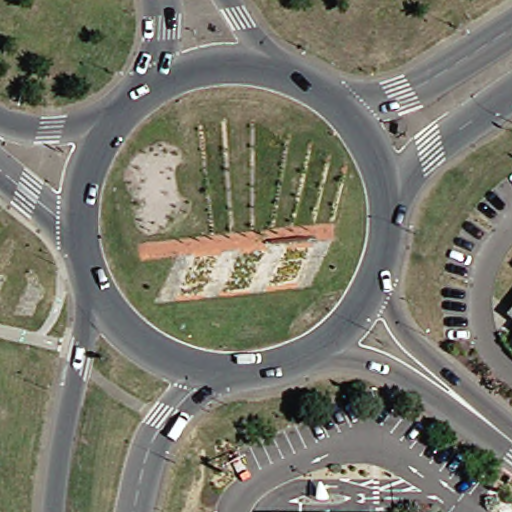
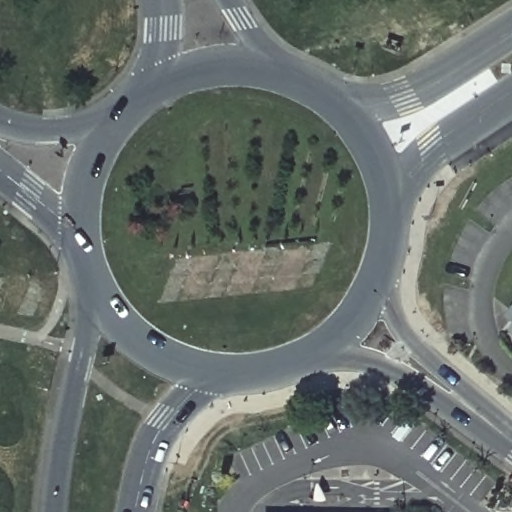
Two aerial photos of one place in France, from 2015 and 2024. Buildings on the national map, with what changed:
[]

